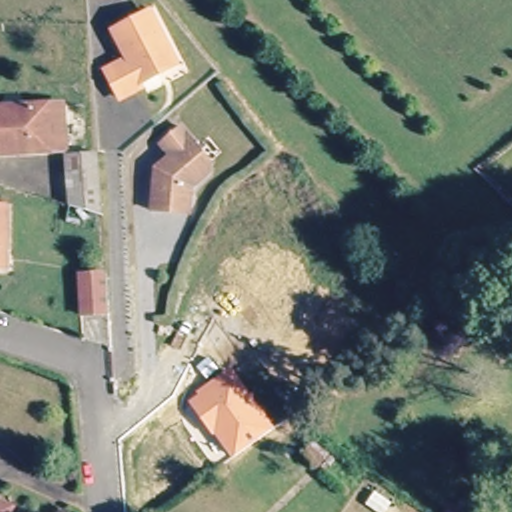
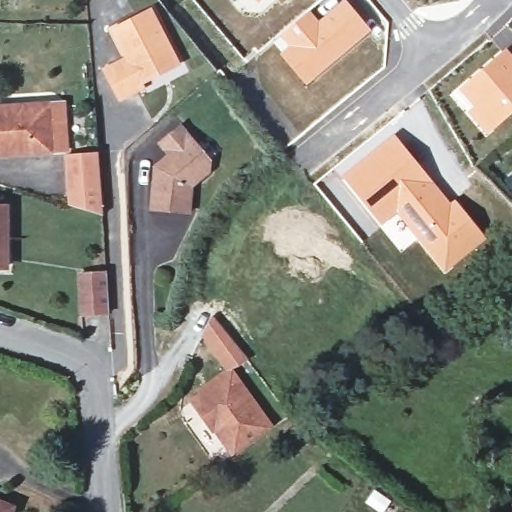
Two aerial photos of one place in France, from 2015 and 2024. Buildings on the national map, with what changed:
new [(258,4),(255,0),(262,0),(258,4)]
new [(311,11),(319,20),(343,0),(346,0),(372,31),(307,85),(272,42),(311,11)]
unchanged [(122,62),(109,31),(146,14),(171,66),(135,84),(137,90),(115,102),(99,72),(122,62)]
new [(506,48),(512,54),(512,113),(487,136),(451,95),(506,48)]
unchanged [(70,152),(0,154),(0,110),(67,107),(70,152)]
unchanged [(155,169),(170,156),(159,145),(180,126),(210,162),(210,174),(192,189),(191,216),(152,213),(155,169)]
new [(394,133),(451,201),(455,198),(487,238),(445,274),(416,240),(401,252),(340,176),(394,133)]
unchanged [(66,207),(64,159),(96,156),(100,217),(66,207)]
unchanged [(7,270),(0,270),(0,211),(9,212),(7,270)]
unchanged [(79,316),(75,272),(103,271),(106,314),(79,316)]
new [(212,315),(246,360),(235,370),(231,365),(224,370),(200,336),(212,315)]
unchanged [(197,394),(195,390),(224,370),(231,365),(235,370),(273,425),(232,456),(215,433),(212,435),(188,400),(197,394)]
unchanged [(0,512),(0,507),(12,512),(0,512)]

